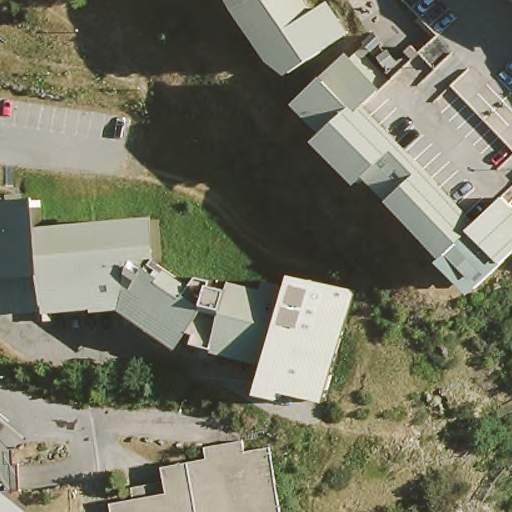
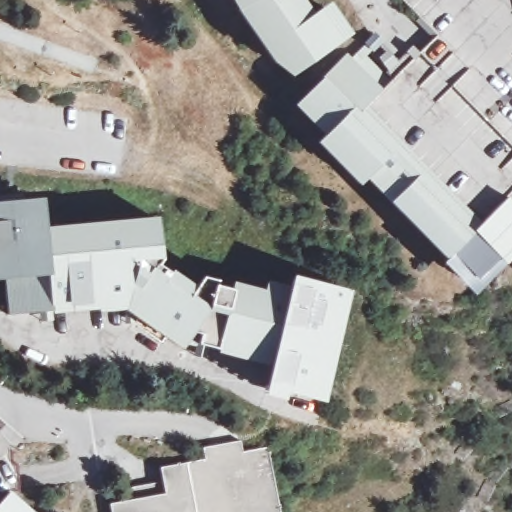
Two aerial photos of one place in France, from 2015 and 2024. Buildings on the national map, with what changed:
unchanged [(332,14),(348,41),(288,74),(281,63),(273,68),(234,7),(230,0),(305,0),(318,21),(332,14)]
unchanged [(357,131),(390,164),(393,168),(409,184),(457,234),(467,243),(481,229),(500,212),(512,223),(512,256),(469,299),(444,272),(448,268),(371,190),(363,197),(325,157),(331,151),(309,127),(353,84),(357,88),(365,81),(386,103),(377,112),(357,131)]
unchanged [(185,279),(241,293),(243,285),(272,292),(274,280),(296,285),(299,277),(341,286),(316,395),(272,386),(280,353),(260,348),(256,363),(184,346),(177,356),(105,304),(0,316),(0,208),(17,207),(19,224),(135,212),(136,245),(145,245),(145,272),(175,293),(185,279)]
unchanged [(186,459),(210,455),(209,446),(247,439),(248,447),(266,443),(281,512),(197,512),(186,459)]
unchanged [(114,502),(165,492),(161,464),(186,459),(197,512),(116,512),(114,502)]
unchanged [(18,512),(0,512),(0,497),(18,512)]

